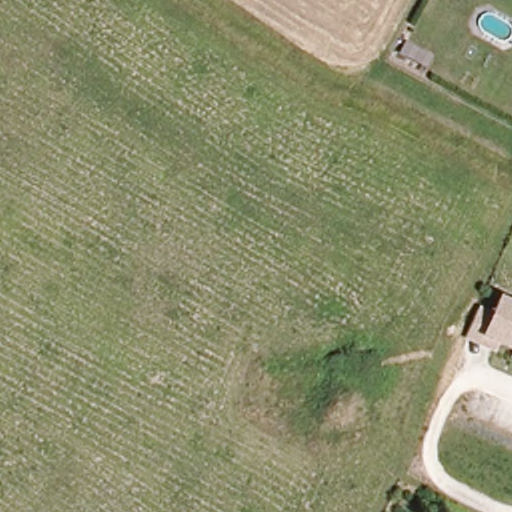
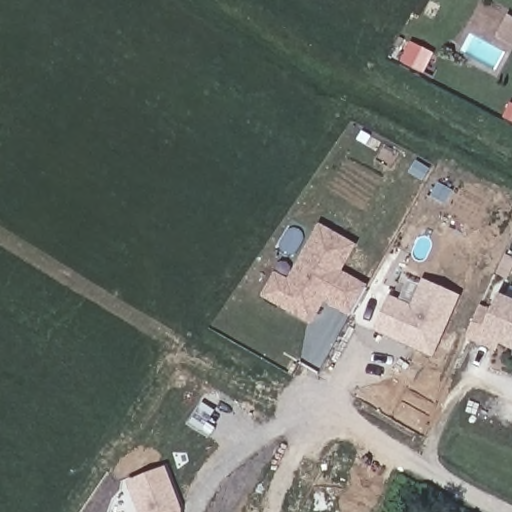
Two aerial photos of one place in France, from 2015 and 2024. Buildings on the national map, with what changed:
new [(342,271),(369,285),(351,317),(324,301),(312,325),(259,297),(274,271),(288,278),(318,223),(357,245),(342,271)]
new [(434,359),(373,331),(389,295),(412,306),(423,280),(462,296),(434,359)]
unchanged [(501,347),(497,355),(466,341),(482,306),(492,309),(497,294),(512,300),(512,352),(501,347)]
new [(138,512),(126,481),(165,466),(182,509),(182,512),(138,512)]

